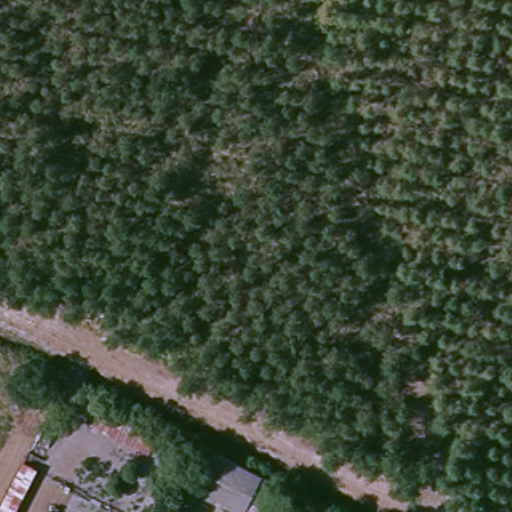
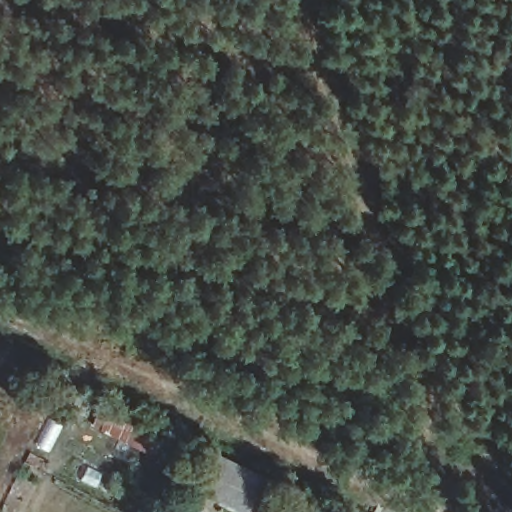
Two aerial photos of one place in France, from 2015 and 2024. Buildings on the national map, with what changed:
unchanged [(232,512),(202,497),(223,451),(260,470),(239,512),(232,512)]
unchanged [(42,471),(20,512),(0,512),(0,509),(25,461),(42,471)]

